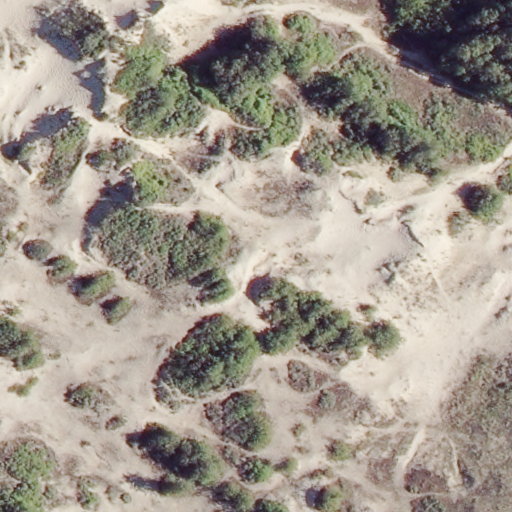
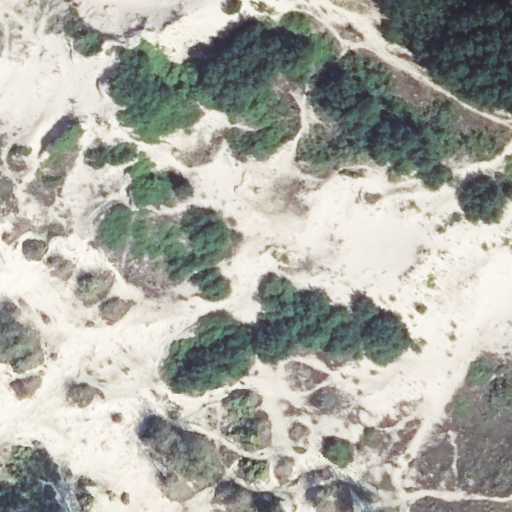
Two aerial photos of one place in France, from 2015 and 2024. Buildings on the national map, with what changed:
[]

